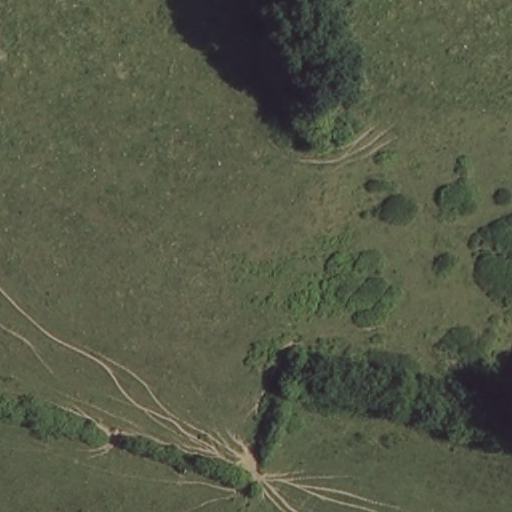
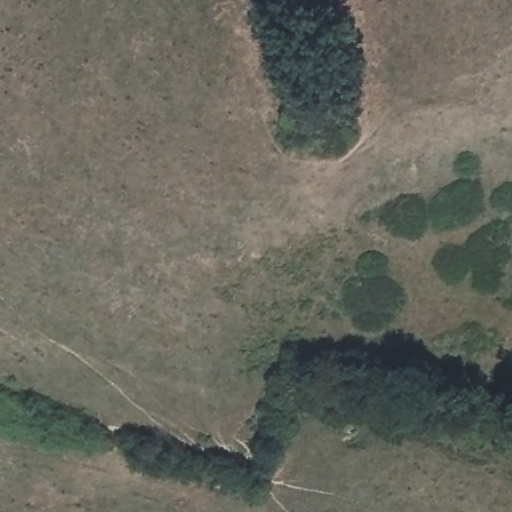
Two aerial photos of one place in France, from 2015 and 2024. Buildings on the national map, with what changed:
[]

